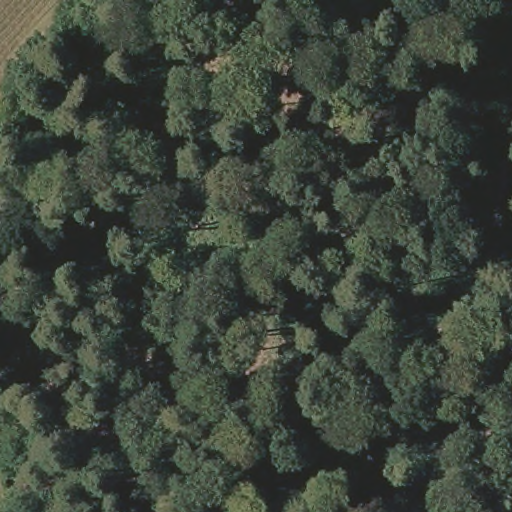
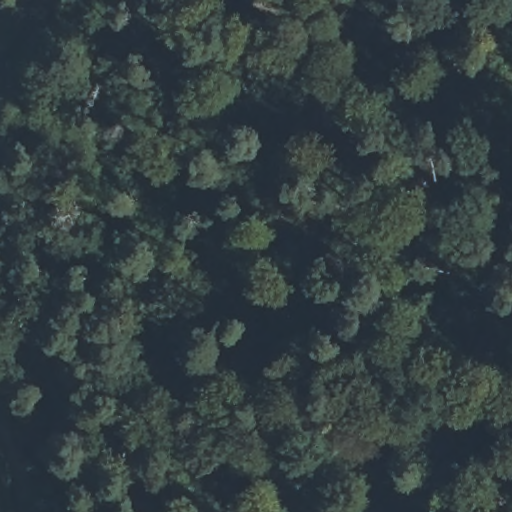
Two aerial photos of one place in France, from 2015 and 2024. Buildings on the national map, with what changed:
[]

